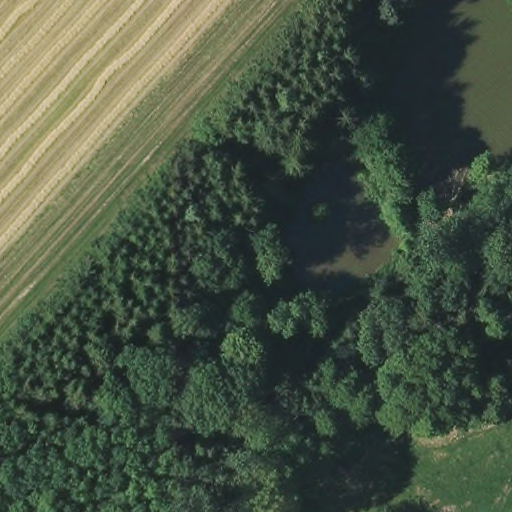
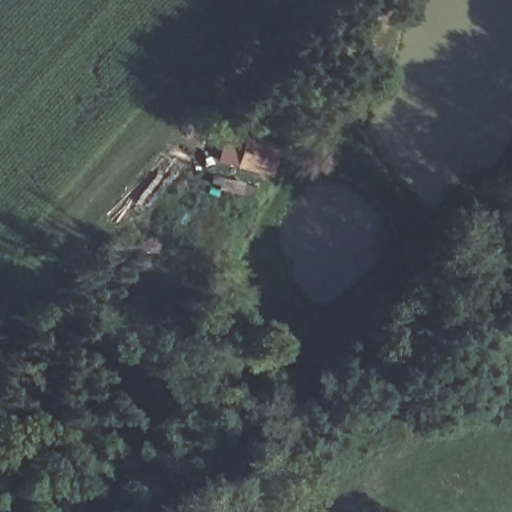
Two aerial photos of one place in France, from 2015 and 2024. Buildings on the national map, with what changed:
unchanged [(236,169),(245,140),(280,148),(272,180),(236,169)]

